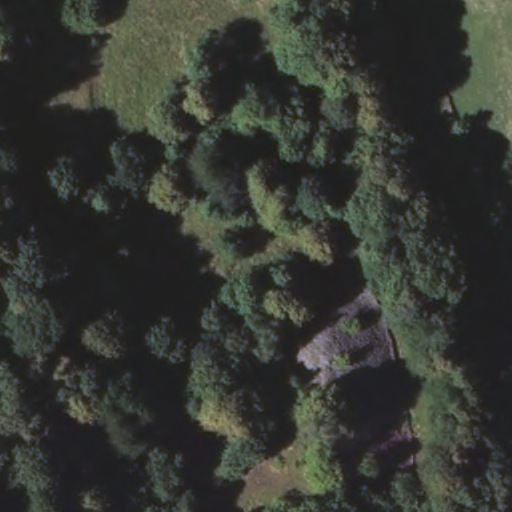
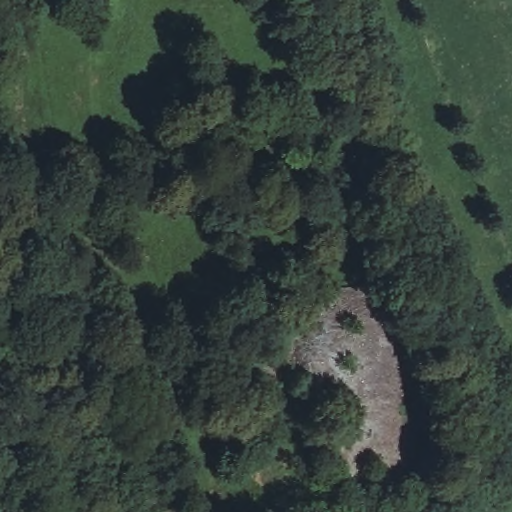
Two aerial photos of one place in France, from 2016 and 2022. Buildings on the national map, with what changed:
unchanged [(195,51),(235,56),(233,73),(231,89),(192,85),(195,51)]

